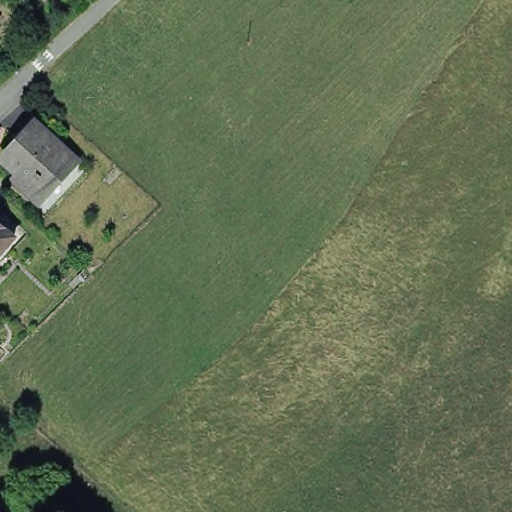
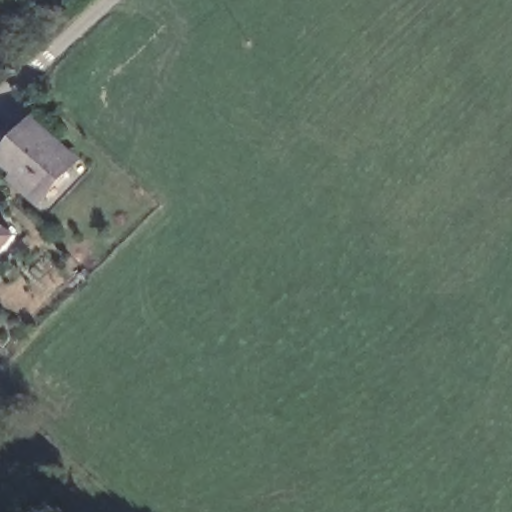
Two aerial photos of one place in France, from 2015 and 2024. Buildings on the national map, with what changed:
unchanged [(37,121),(80,158),(42,200),(18,179),(22,174),(3,157),(37,121)]
unchanged [(5,196),(6,197),(0,203),(0,191),(5,196)]
unchanged [(6,230),(7,232),(12,238),(0,250),(0,223),(6,230)]

